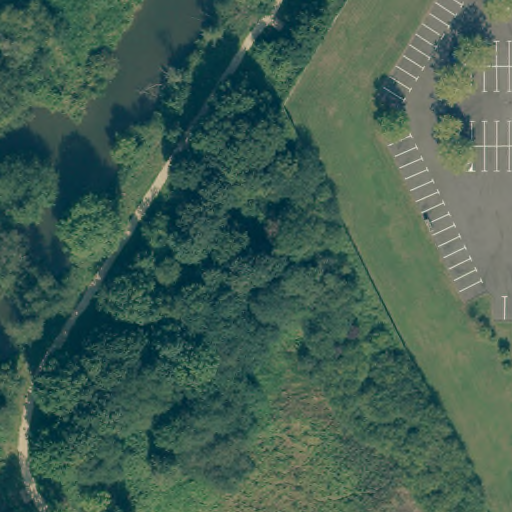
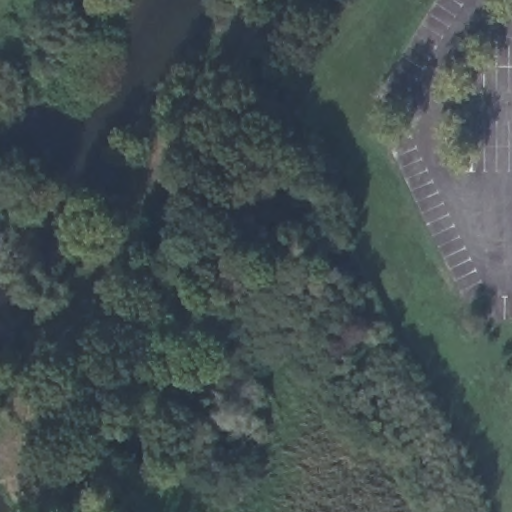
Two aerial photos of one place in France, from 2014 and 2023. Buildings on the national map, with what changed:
[]

